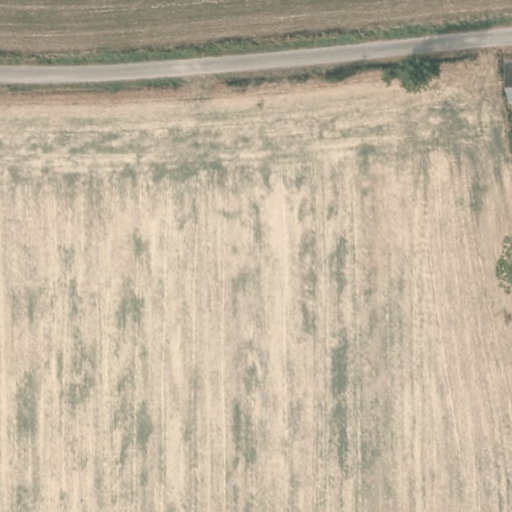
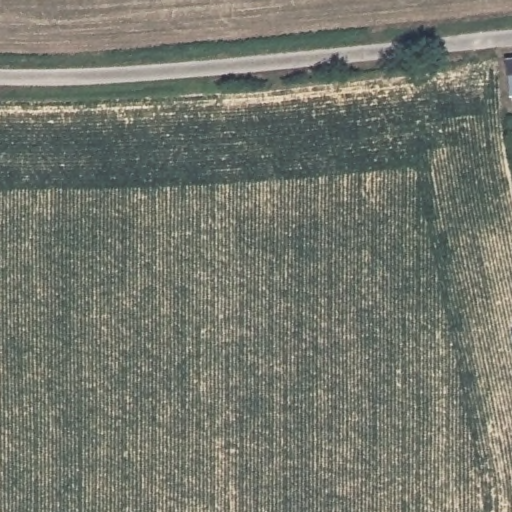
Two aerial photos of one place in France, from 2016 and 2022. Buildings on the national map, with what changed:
unchanged [(509,63),(512,63),(512,88),(509,66),(509,63)]

